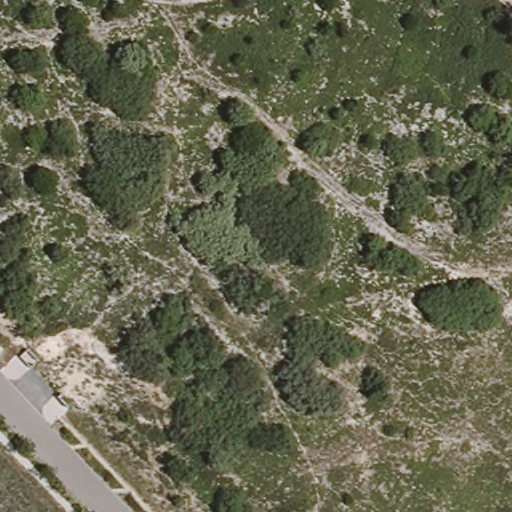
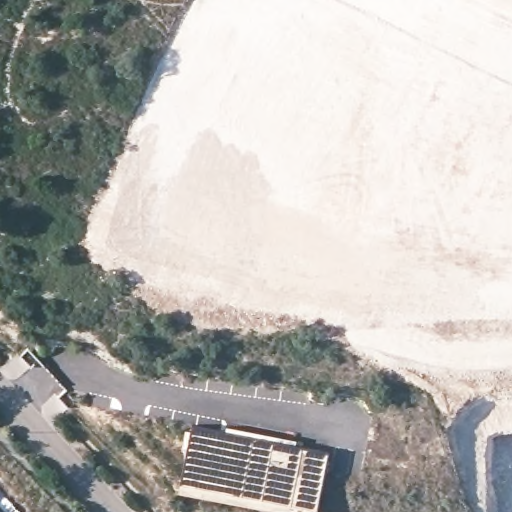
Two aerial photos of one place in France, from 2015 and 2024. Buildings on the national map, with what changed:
new [(228,426),(297,441),(296,446),(330,453),(318,512),(289,512),(180,490),(193,425),(227,431),(228,426)]

